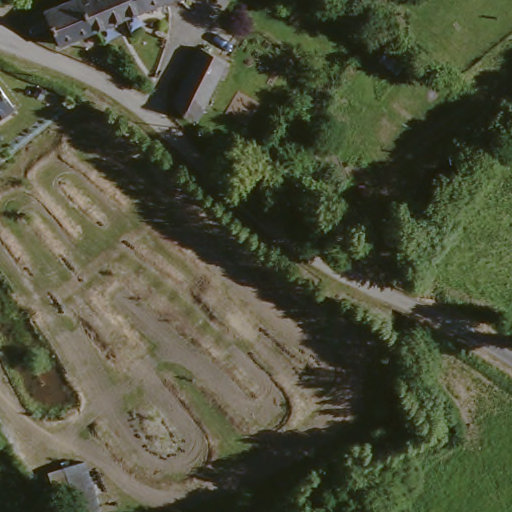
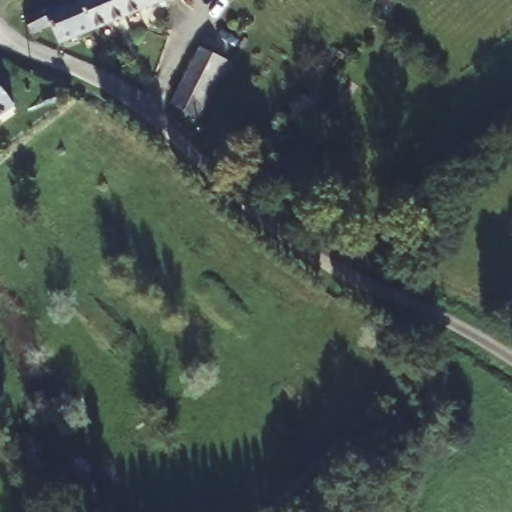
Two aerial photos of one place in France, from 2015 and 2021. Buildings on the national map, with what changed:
unchanged [(69,0),(164,0),(116,20),(47,49),(38,31),(31,34),(21,37),(15,21),(69,0)]
unchanged [(200,50),(226,65),(197,120),(170,106),(200,50)]
unchanged [(0,116),(0,89),(13,108),(0,116)]

